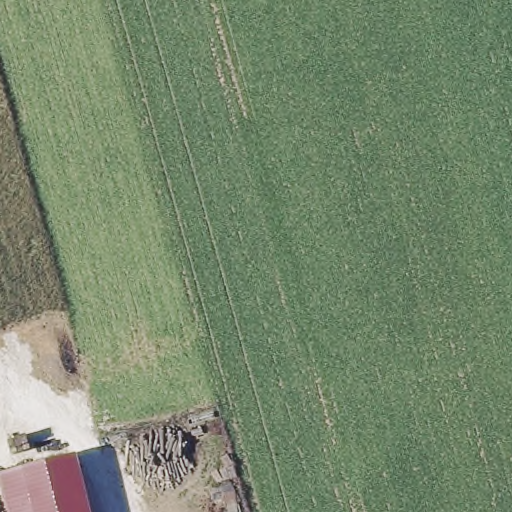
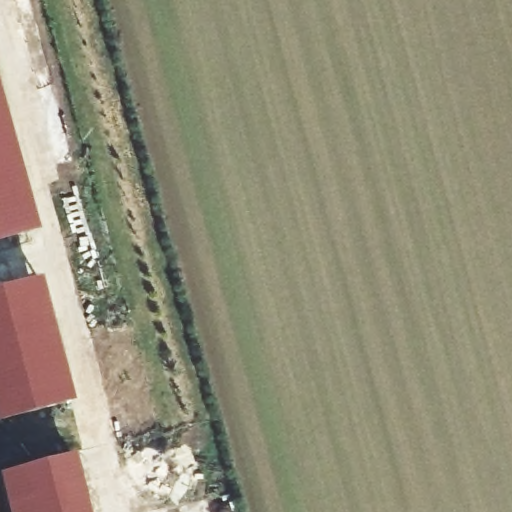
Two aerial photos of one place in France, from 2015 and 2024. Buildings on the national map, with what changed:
new [(40,232),(0,242),(0,90),(40,232)]
new [(44,280),(76,401),(0,421),(0,291),(44,280)]
new [(0,477),(0,470),(82,447),(97,512),(8,512),(0,477)]

